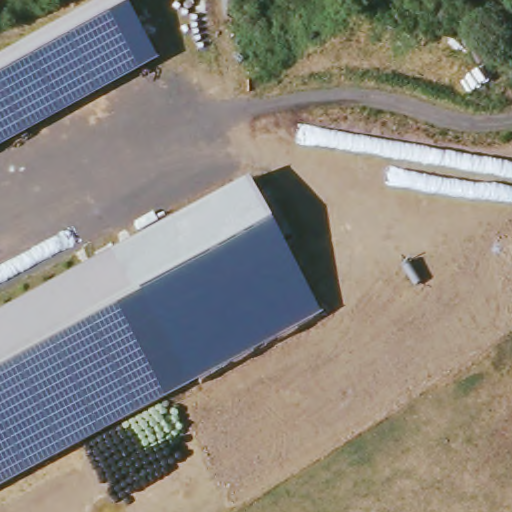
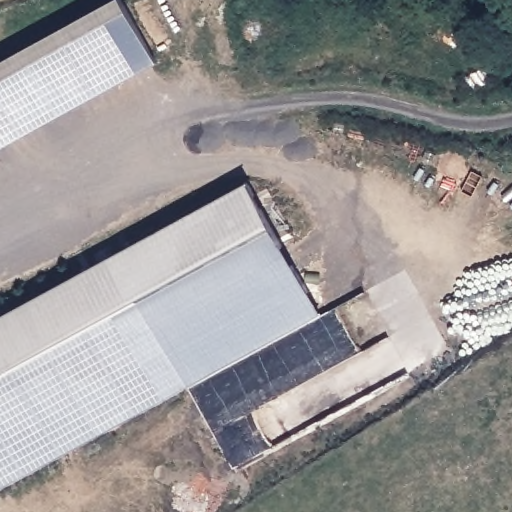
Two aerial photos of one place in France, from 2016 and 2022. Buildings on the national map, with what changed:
unchanged [(0,53),(93,0),(133,0),(166,52),(0,141),(0,53)]
unchanged [(247,177),(322,312),(190,383),(115,250),(247,177)]
unchanged [(190,383),(0,488),(0,313),(115,250),(190,383)]

